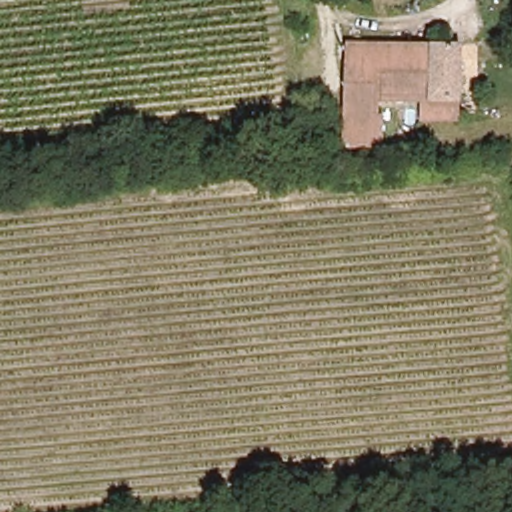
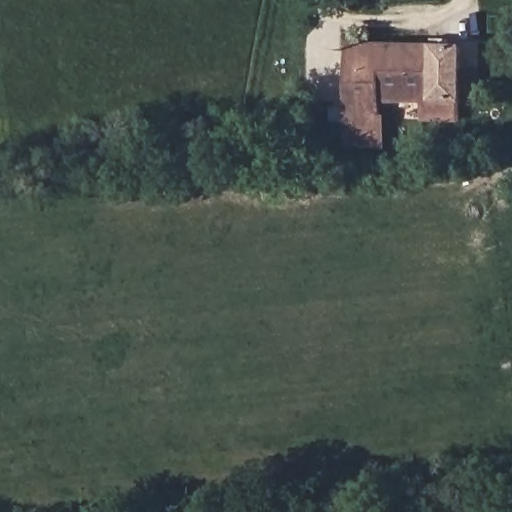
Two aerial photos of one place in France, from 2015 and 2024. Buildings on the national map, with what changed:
unchanged [(463,46),(460,121),(425,119),(425,102),(383,100),(381,144),(348,143),(351,43),(463,46)]

